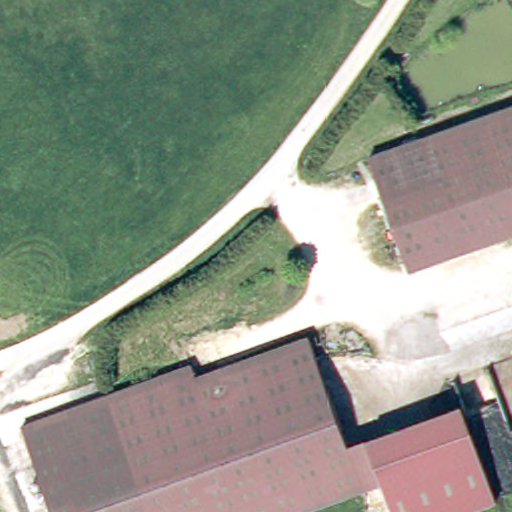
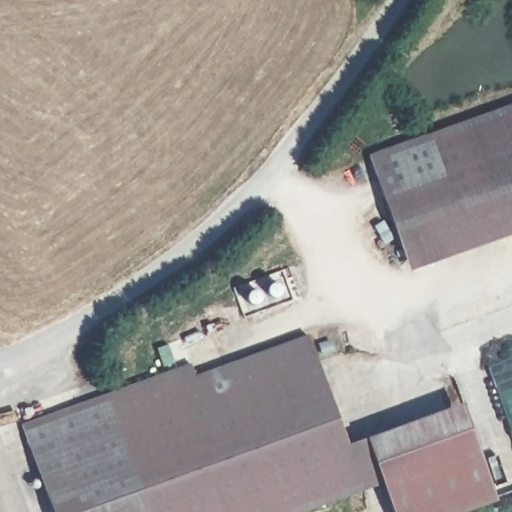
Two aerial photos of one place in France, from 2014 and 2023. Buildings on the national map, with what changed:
unchanged [(402,251),(369,157),(512,107),(512,233),(409,270),(402,251)]
unchanged [(496,500),(462,512),(393,512),(391,507),(381,482),(364,488),(297,512),(51,512),(20,425),(46,416),(191,365),(196,377),(308,336),(348,446),(366,440),(461,405),(484,470),(496,500)]

